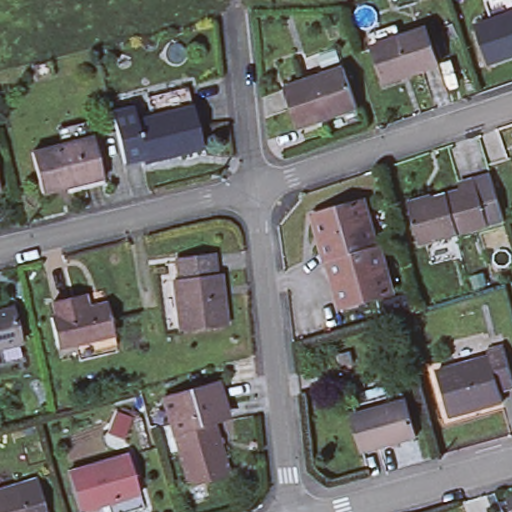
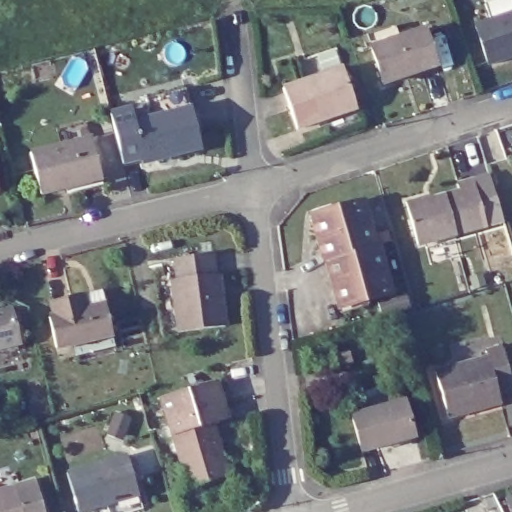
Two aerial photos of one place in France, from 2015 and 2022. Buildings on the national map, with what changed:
unchanged [(479,33),(494,28),(489,12),(512,5),(512,64),(490,72),(479,33)]
unchanged [(442,71),(387,88),(377,53),(373,41),(401,32),(405,44),(430,36),(442,71)]
unchanged [(345,66),(360,104),(303,127),(289,87),(345,66)]
unchanged [(152,120),(150,113),(155,112),(152,101),(187,92),(192,111),(202,152),(145,166),(135,124),(152,120)]
unchanged [(33,151),(92,135),(102,177),(43,191),(33,151)]
unchanged [(462,189),(460,183),(478,178),(493,174),(506,218),(490,223),(423,242),(410,204),(462,189)]
unchanged [(317,216),(364,200),(377,245),(333,258),(330,259),(317,216)]
unchanged [(377,245),(381,244),(395,291),(346,305),(333,258),(377,245)]
unchanged [(170,265),(192,262),(190,249),(223,245),(225,264),(231,264),(238,317),(192,322),(178,324),(170,265)]
unchanged [(60,339),(52,310),(60,308),(56,294),(85,286),(105,281),(107,295),(115,326),(118,339),(80,349),(77,335),(60,339)]
unchanged [(18,304),(27,346),(0,353),(0,308),(18,304)]
unchanged [(490,356),(507,353),(512,385),(512,394),(497,397),(499,406),(475,409),(477,414),(445,419),(437,370),(492,361),(490,356)]
unchanged [(192,484),(177,435),(173,425),(172,420),(165,397),(218,382),(224,405),(217,407),(222,422),(216,423),(230,472),(192,484)]
unchanged [(367,457),(356,422),(352,411),(405,397),(407,406),(418,442),(367,457)]
unchanged [(137,451),(150,499),(127,507),(123,494),(114,457),(137,451)]
unchanged [(53,473),(114,457),(123,494),(63,512),(53,473)]
unchanged [(49,512),(24,512),(17,481),(38,475),(49,512)]
unchanged [(17,481),(24,512),(0,512),(0,486),(17,481)]
unchanged [(512,501),(512,512),(504,512),(502,507),(512,501)]

